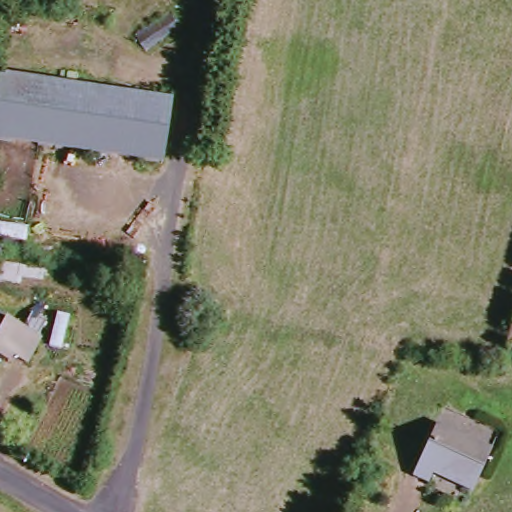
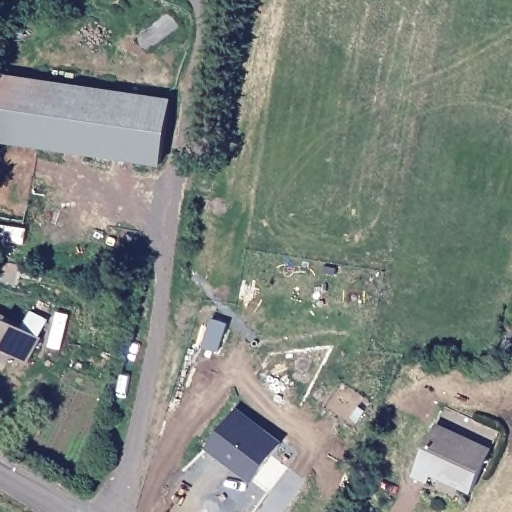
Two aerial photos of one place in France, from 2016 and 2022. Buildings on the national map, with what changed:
unchanged [(0,142),(0,77),(171,97),(164,161),(0,142)]
unchanged [(9,349),(4,358),(0,356),(0,313),(36,332),(22,356),(9,349)]
new [(237,407),(282,443),(253,482),(206,450),(237,407)]
unchanged [(468,486),(454,481),(454,477),(430,466),(425,478),(411,472),(433,421),(486,444),(468,486)]

